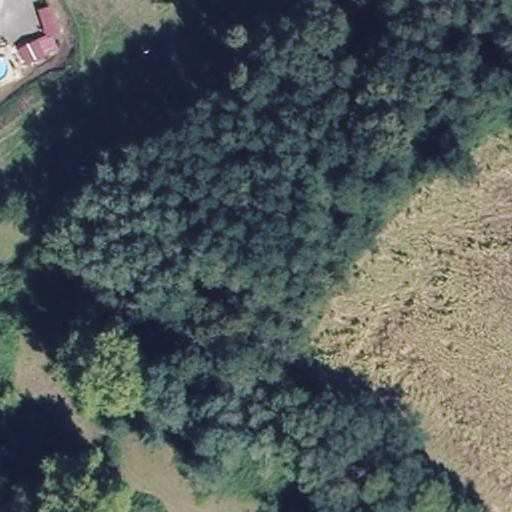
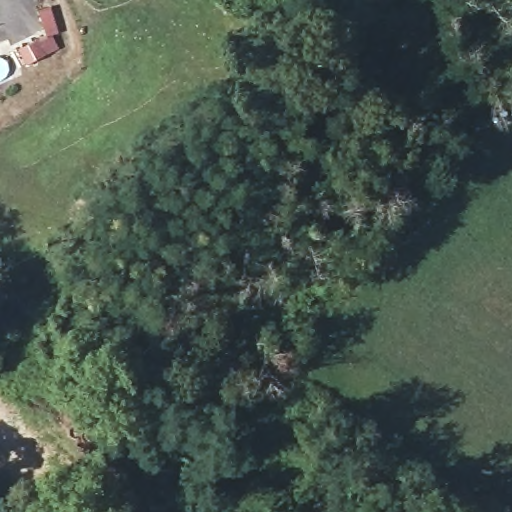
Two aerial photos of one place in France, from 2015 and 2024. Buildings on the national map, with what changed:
unchanged [(52,5),(60,35),(54,37),(59,51),(46,57),(44,55),(26,64),(17,48),(44,35),(37,9),(52,5)]

